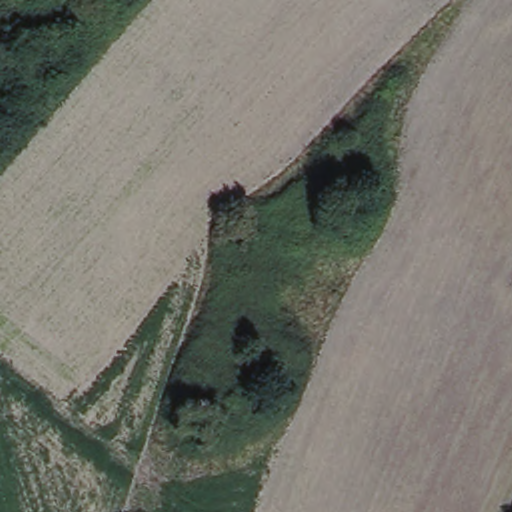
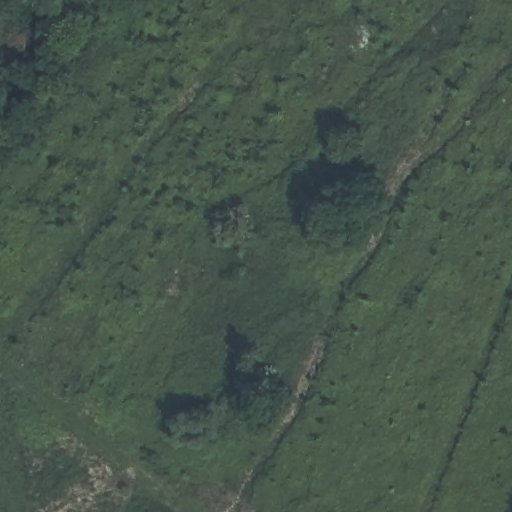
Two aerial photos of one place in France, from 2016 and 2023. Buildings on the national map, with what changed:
unchanged [(353,197),(374,212),(350,243),(328,226),(353,197)]
unchanged [(257,356),(278,365),(258,413),(238,405),(257,356)]

